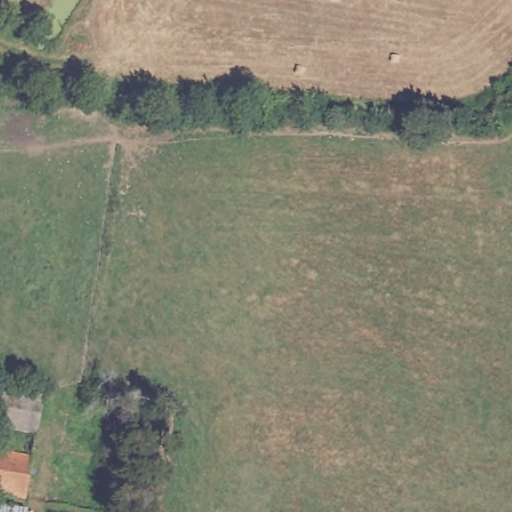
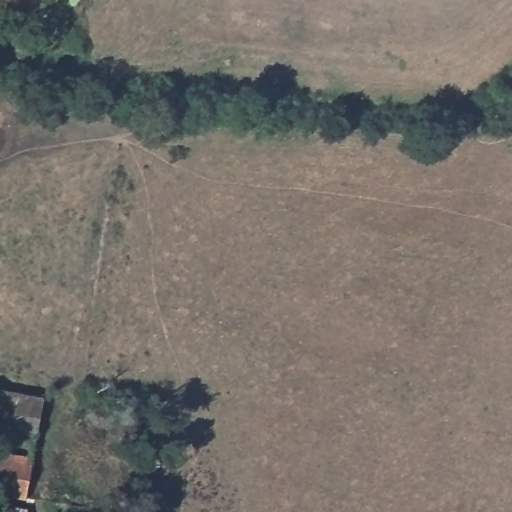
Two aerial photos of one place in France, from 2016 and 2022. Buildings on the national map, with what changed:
unchanged [(0,391),(45,402),(29,463),(0,455),(0,391)]
unchanged [(115,431),(119,420),(138,426),(134,437),(115,431)]
unchanged [(0,497),(0,455),(29,463),(18,502),(0,497)]
unchanged [(0,510),(21,510),(21,512),(0,512),(0,510)]

